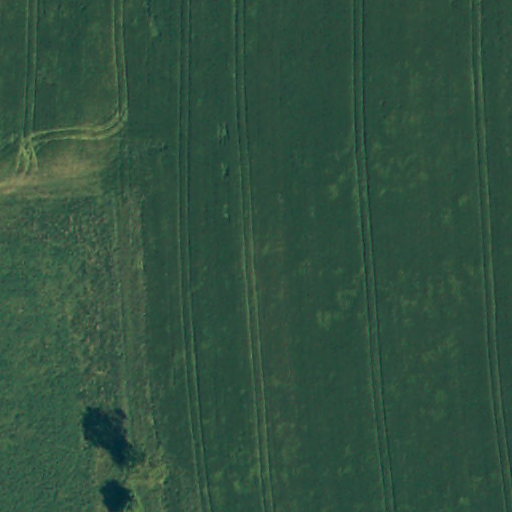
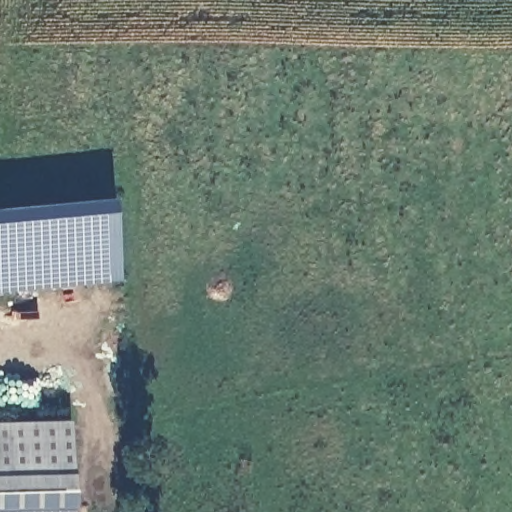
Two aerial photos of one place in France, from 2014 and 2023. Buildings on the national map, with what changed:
new [(119,282),(0,293),(0,210),(112,199),(119,282)]
new [(0,512),(0,423),(70,421),(73,512),(0,512)]

